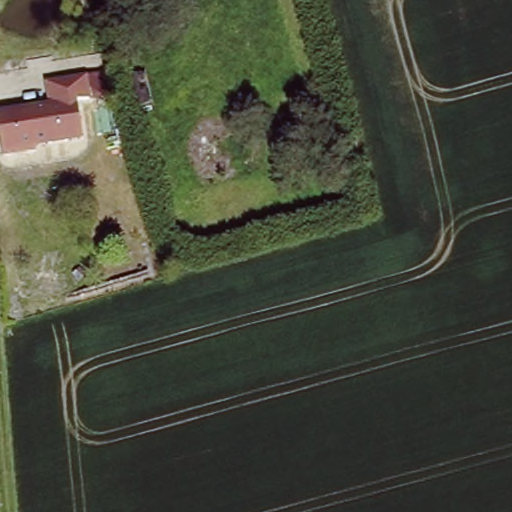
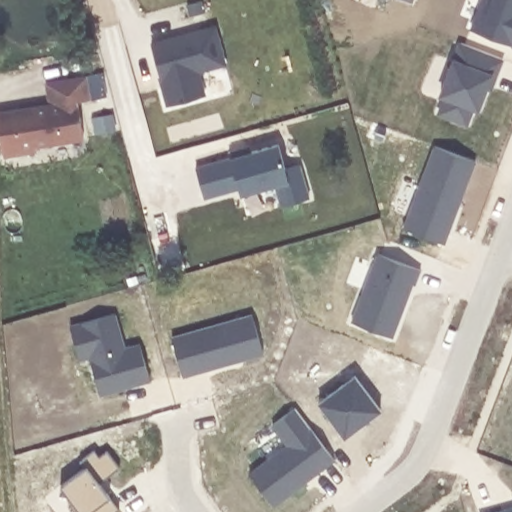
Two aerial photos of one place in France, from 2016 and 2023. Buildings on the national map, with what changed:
demolished [(126,11),(111,15),(106,0),(122,0),(126,11)]
new [(474,27),(484,0),(512,0),(512,42),(474,27)]
new [(216,24),(226,64),(198,72),(205,94),(166,105),(159,82),(161,81),(150,43),(216,24)]
new [(444,92),(464,40),(506,56),(499,74),(494,86),(490,85),(482,106),(477,104),(470,121),(443,110),(449,94),(444,92)]
demolished [(145,65),(153,100),(137,106),(128,73),(145,65)]
unchanged [(46,101),(42,77),(82,71),(85,93),(74,95),(81,140),(30,148),(30,150),(0,155),(0,109),(10,107),(10,113),(24,111),(23,105),(46,101)]
new [(230,156),(228,150),(249,144),(250,151),(278,143),(287,166),(299,164),(309,197),(281,206),(272,186),(241,194),(239,187),(203,198),(195,167),(230,156)]
new [(438,143),(478,158),(447,240),(406,225),(438,143)]
new [(381,251),(424,267),(418,282),(415,281),(395,335),(355,319),(381,251)]
new [(127,385),(103,392),(92,354),(82,357),(73,324),(117,311),(127,346),(143,342),(152,373),(153,377),(127,385)]
new [(255,312),(266,351),(186,374),(175,335),(255,312)]
new [(357,373),(383,407),(347,434),(322,400),(357,373)]
new [(290,442),(275,423),(298,405),(337,457),(276,503),(252,471),(290,442)]
new [(83,459),(98,447),(102,454),(110,448),(123,465),(103,480),(123,506),(115,512),(80,512),(71,500),(74,497),(63,483),(88,465),(83,459)]
new [(497,512),(512,508),(512,512),(497,512)]

